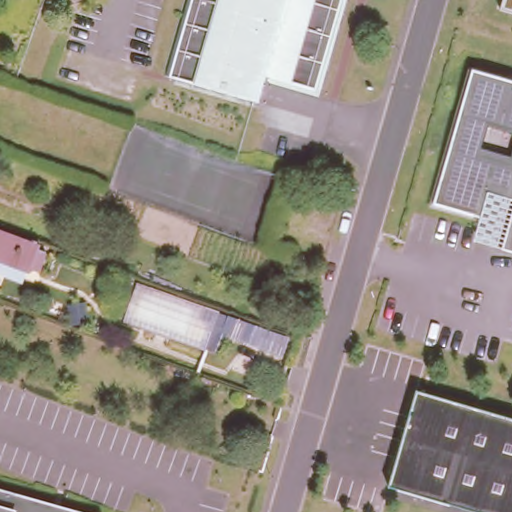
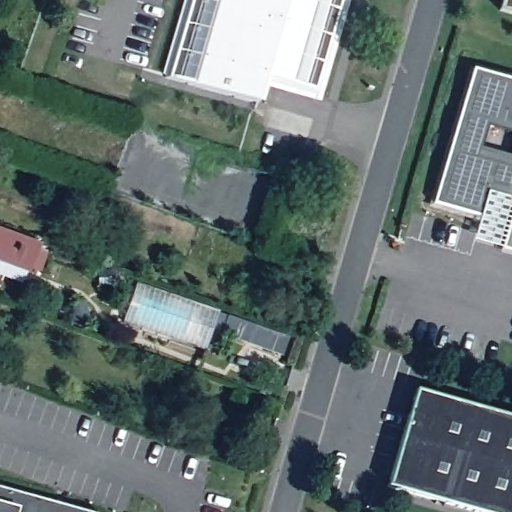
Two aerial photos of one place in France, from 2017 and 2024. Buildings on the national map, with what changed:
unchanged [(327,87),(271,71),(263,99),(171,72),(192,0),(352,0),(327,87)]
unchanged [(471,241),(480,215),(433,201),(471,69),(512,81),(512,251),(471,241)]
unchanged [(45,247),(35,274),(26,271),(25,280),(0,272),(0,230),(45,247)]
unchanged [(101,285),(99,272),(108,270),(110,283),(101,285)]
unchanged [(240,337),(245,323),(282,336),(276,351),(240,337)]
unchanged [(414,386),(512,415),(512,512),(481,512),(386,484),(414,386)]
unchanged [(82,512),(0,512),(0,489),(82,512)]

